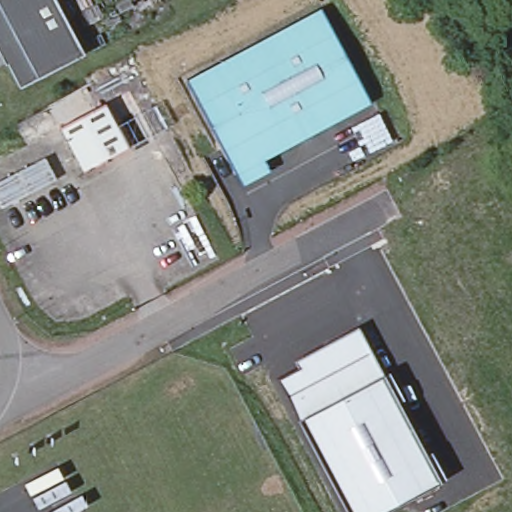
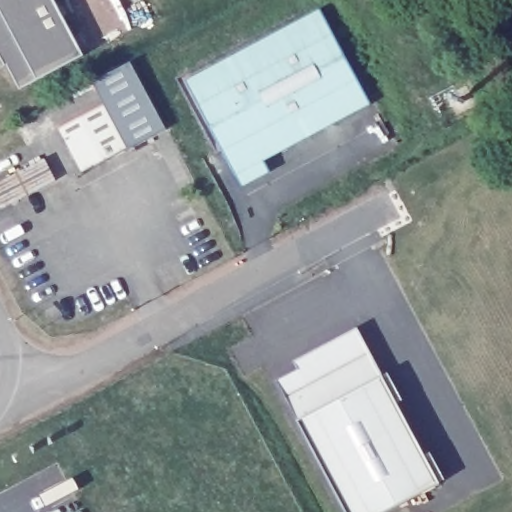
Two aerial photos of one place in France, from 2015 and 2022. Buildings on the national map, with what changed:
unchanged [(82,54),(17,88),(5,63),(2,64),(0,59),(0,0),(54,0),(82,54)]
unchanged [(370,107),(235,178),(186,84),(320,12),(370,107)]
new [(102,105),(105,103),(94,81),(133,63),(165,130),(125,150),(102,105)]
demolished [(132,86),(136,94),(128,99),(124,91),(132,86)]
unchanged [(102,105),(125,150),(80,174),(57,129),(102,105)]
unchanged [(280,381),(298,371),(294,365),(358,330),(383,378),(440,481),(380,512),(349,512),(302,422),(280,381)]

